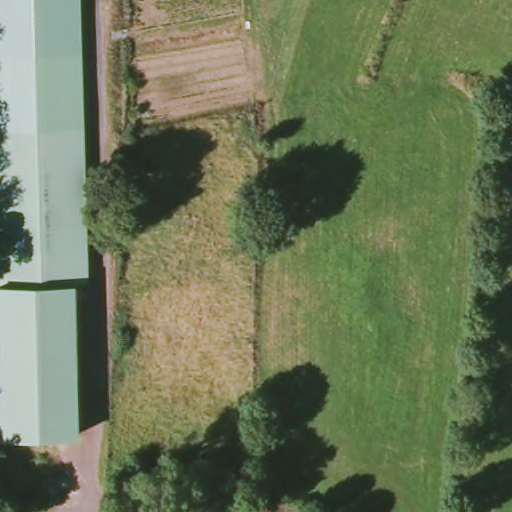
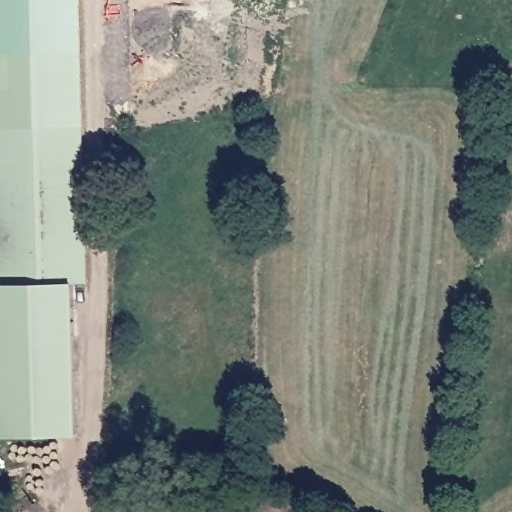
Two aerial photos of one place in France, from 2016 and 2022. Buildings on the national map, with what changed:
unchanged [(0,0),(77,0),(78,55),(0,59),(0,0)]
unchanged [(2,284),(0,239),(0,59),(78,55),(82,141),(88,281),(75,281),(82,433),(10,437),(3,284),(2,284)]

